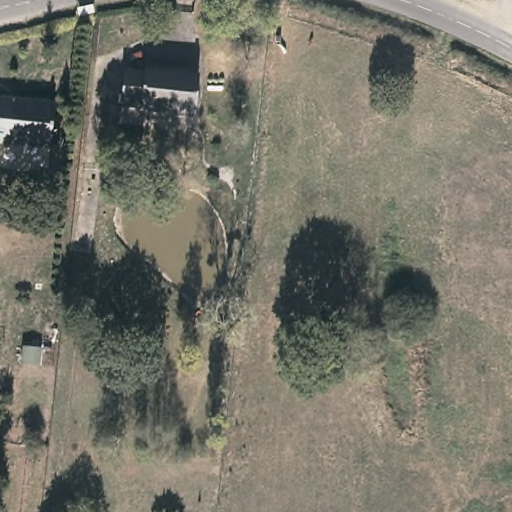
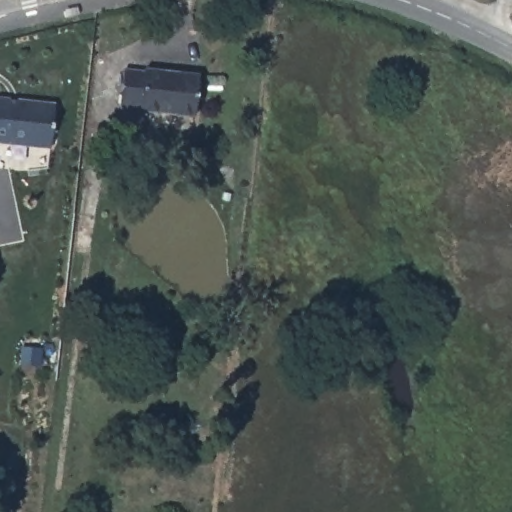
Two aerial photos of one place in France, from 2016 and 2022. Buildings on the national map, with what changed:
unchanged [(200,71),(196,112),(120,105),(125,65),(157,69),(157,67),(200,71)]
unchanged [(57,109),(52,149),(0,143),(0,102),(57,109)]

